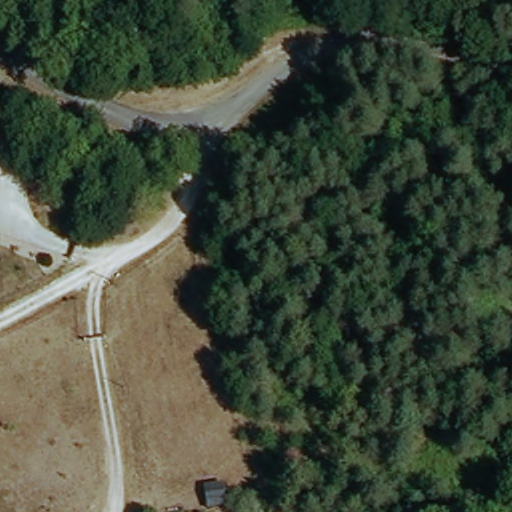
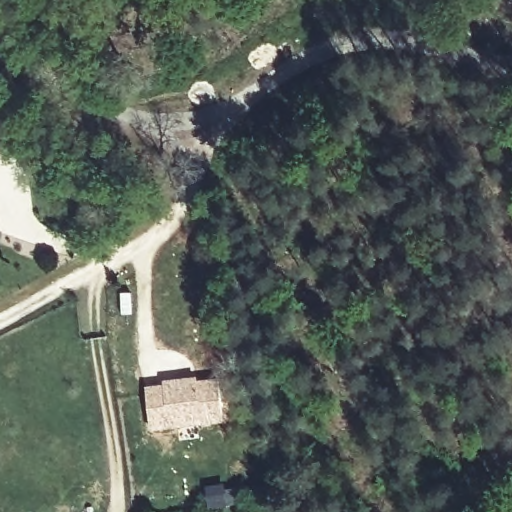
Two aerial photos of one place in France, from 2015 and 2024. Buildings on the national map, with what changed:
new [(162,383),(161,379),(219,377),(224,423),(149,431),(143,385),(162,383)]
new [(236,483),(239,504),(208,510),(204,486),(236,483)]

